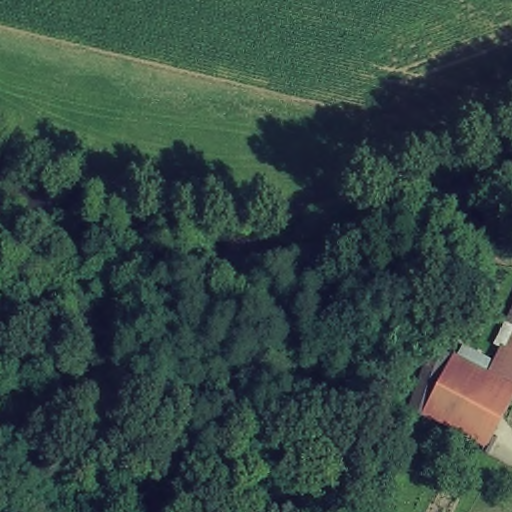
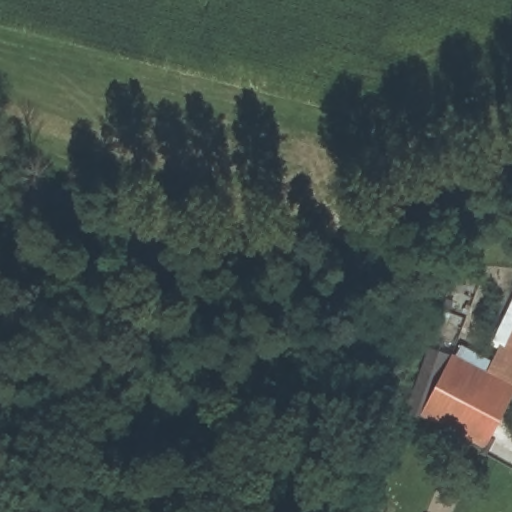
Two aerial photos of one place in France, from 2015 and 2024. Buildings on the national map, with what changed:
unchanged [(457,345),(489,359),(512,321),(512,394),(487,443),(419,408),(457,345)]
unchanged [(425,346),(441,352),(434,369),(419,408),(404,403),(425,346)]

